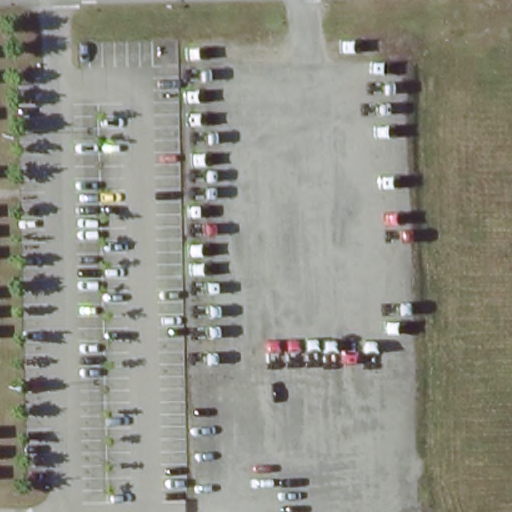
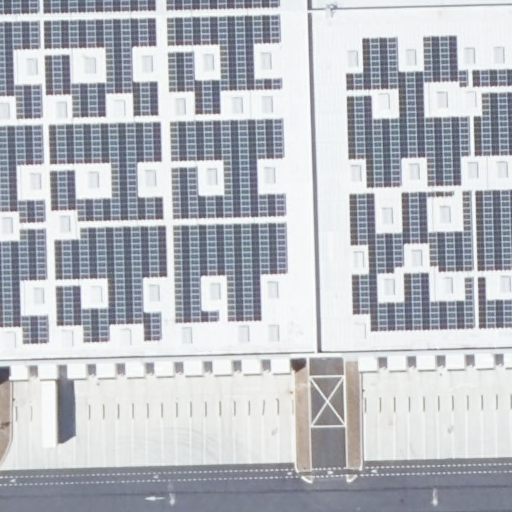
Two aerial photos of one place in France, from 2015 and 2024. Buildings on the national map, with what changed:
new [(178,364),(178,363),(81,366),(81,362),(56,363),(41,364),(12,366),(0,366),(0,0),(512,0),(512,353),(452,353),(405,355),(323,356),(266,363),(266,374),(244,375),(185,375),(185,364),(178,364)]
new [(56,363),(56,365),(60,365),(59,433),(44,432),(41,364),(56,363)]
new [(368,434),(368,438),(383,437),(383,440),(412,437),(412,440),(440,436),(440,441),(512,438),(512,457),(362,463),(361,434),(368,434)]

